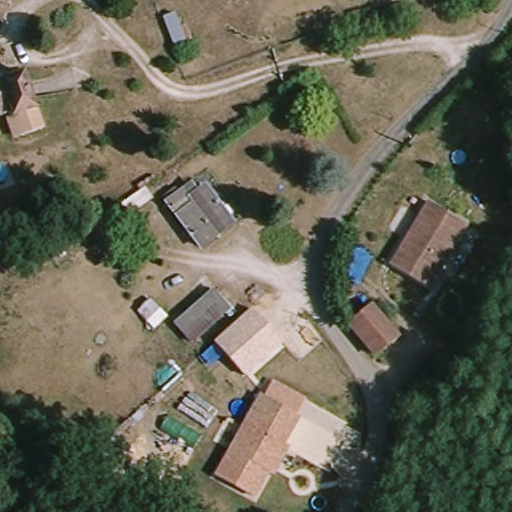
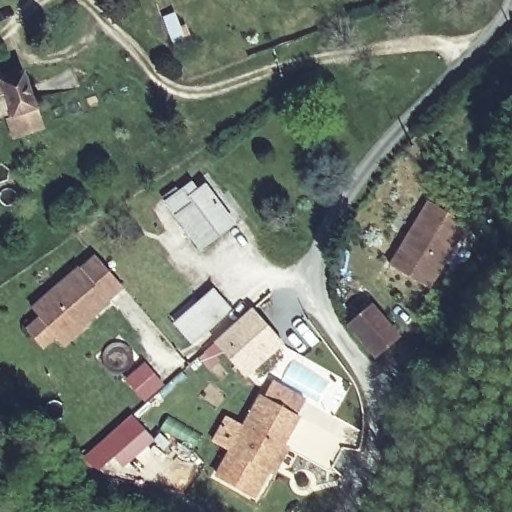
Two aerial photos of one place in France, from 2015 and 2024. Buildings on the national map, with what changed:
unchanged [(9,119),(15,117),(13,112),(0,116),(0,76),(1,76),(3,81),(25,75),(44,130),(22,137),(16,140),(9,119)]
unchanged [(172,204),(195,187),(205,199),(213,191),(240,225),(207,250),(172,204)]
unchanged [(425,208),(466,228),(431,291),(391,271),(425,208)]
new [(30,307),(79,266),(80,268),(93,256),(122,290),(108,302),(112,306),(65,346),(30,307)]
unchanged [(212,290),(231,309),(195,345),(176,326),(212,290)]
unchanged [(370,303),(397,332),(375,352),(347,325),(370,303)]
unchanged [(284,343),(246,377),(214,343),(253,309),(284,343)]
unchanged [(270,470),(256,496),(218,479),(257,397),(264,400),(273,380),(305,398),(296,415),(282,443),(287,445),(280,460),(275,471),(270,470)]
new [(134,416),(147,430),(98,472),(85,458),(134,416)]

